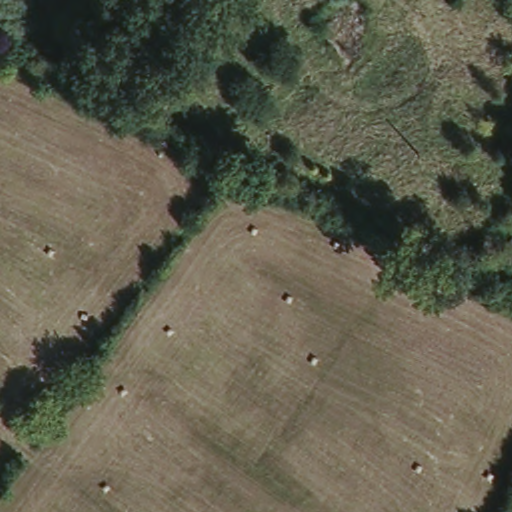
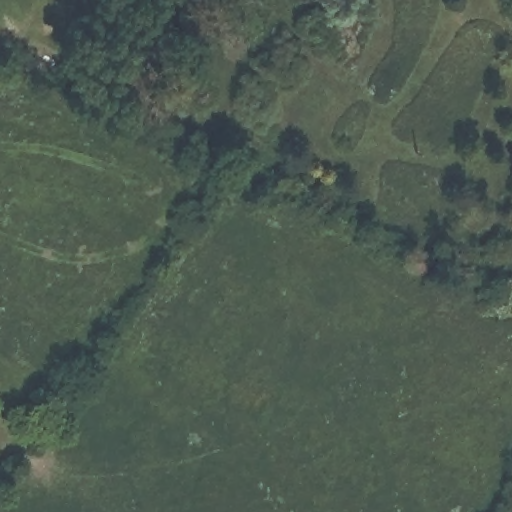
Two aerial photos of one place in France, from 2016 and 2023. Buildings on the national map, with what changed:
unchanged [(509,255),(512,256),(512,280),(505,292),(492,285),(509,255)]

